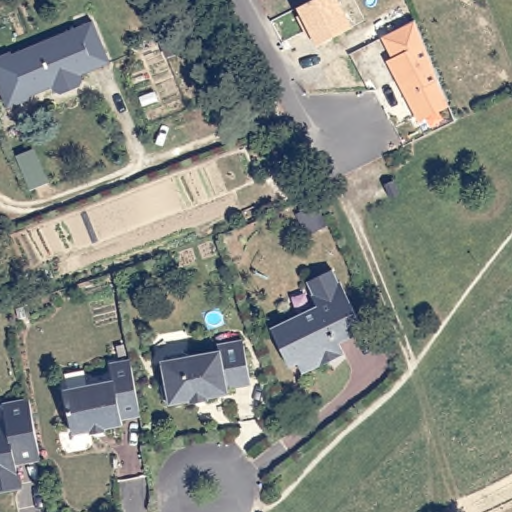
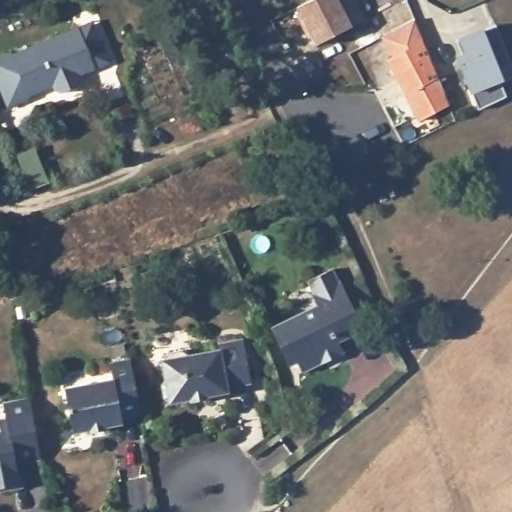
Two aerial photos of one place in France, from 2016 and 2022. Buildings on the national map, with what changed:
unchanged [(306,38),(295,16),(299,15),(295,7),(309,0),(339,0),(352,27),(315,44),(311,39),(306,38)]
unchanged [(29,98),(7,107),(0,91),(0,56),(10,52),(11,54),(76,26),(91,20),(109,61),(94,67),(80,73),(82,77),(79,84),(60,92),(54,90),(52,86),(43,89),(28,96),(29,98)]
unchanged [(413,20),(449,106),(416,120),(385,59),(388,57),(379,36),(413,20)]
new [(462,52),(456,39),(482,28),(483,30),(494,25),(512,70),(512,76),(502,79),(503,82),(498,84),(504,97),(476,110),(468,93),(453,57),(462,52)]
unchanged [(284,136),(288,147),(269,155),(264,143),(284,136)]
unchanged [(395,180),(402,193),(391,198),(385,185),(395,180)]
unchanged [(280,358),(267,331),(314,310),(308,297),(311,296),(304,282),(326,273),(332,286),(336,287),(359,335),(333,347),(338,357),(297,376),(292,366),(284,369),(280,358)]
unchanged [(169,351),(182,349),(190,355),(219,350),(218,343),(243,339),(252,384),(230,387),(231,391),(209,395),(209,397),(191,401),(191,399),(172,402),(165,398),(164,386),(167,382),(163,360),(169,351)]
unchanged [(141,419),(121,422),(122,428),(106,431),(107,435),(91,438),(90,434),(73,437),(65,392),(113,383),(110,367),(130,362),(141,419)]
unchanged [(15,488),(0,491),(0,424),(1,423),(0,418),(0,408),(24,403),(33,454),(35,463),(11,468),(15,488)]

